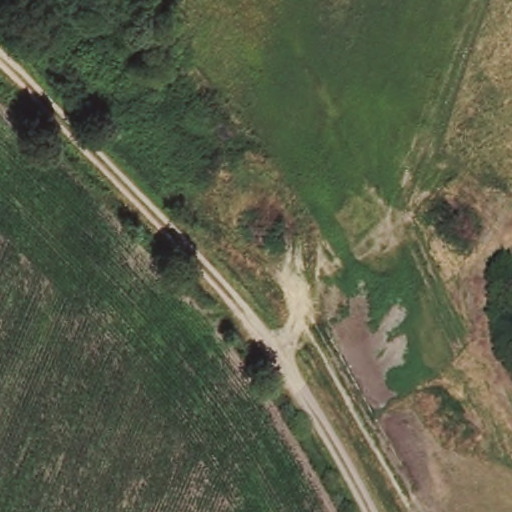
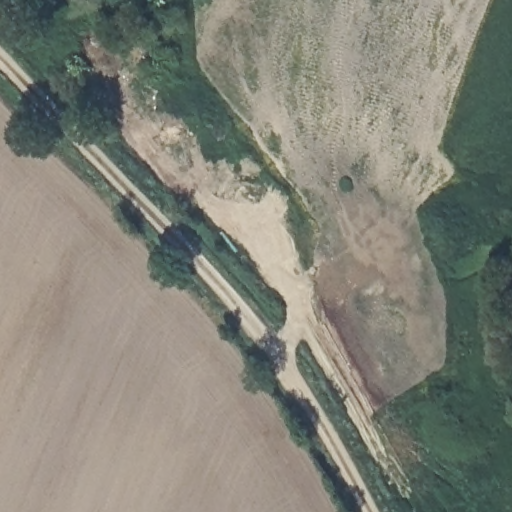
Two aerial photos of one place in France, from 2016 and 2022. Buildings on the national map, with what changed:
unchanged [(210,326),(202,316),(211,308),(219,318),(210,326)]

